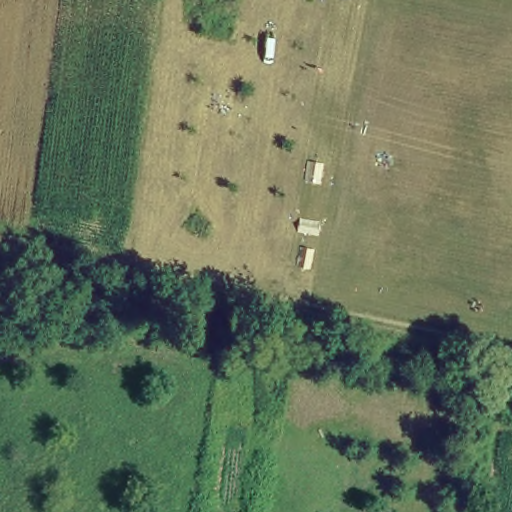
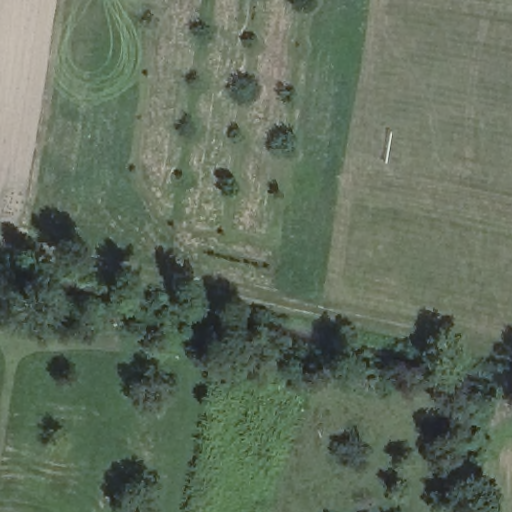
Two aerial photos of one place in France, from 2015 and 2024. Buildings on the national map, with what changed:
[]

